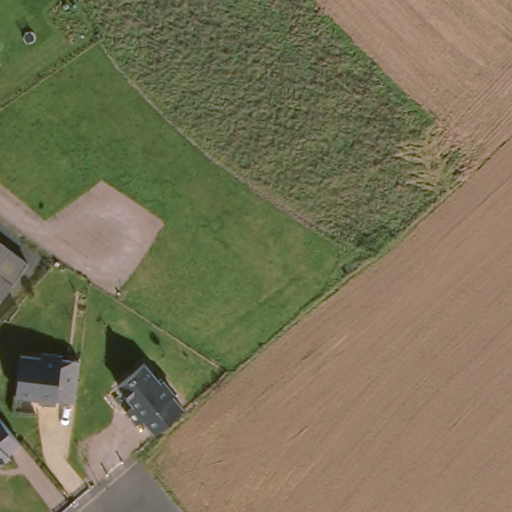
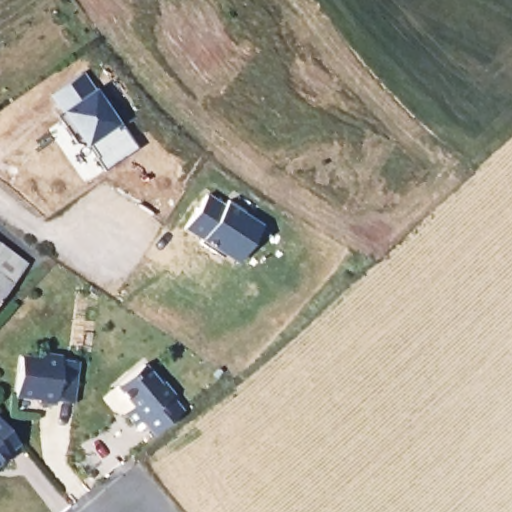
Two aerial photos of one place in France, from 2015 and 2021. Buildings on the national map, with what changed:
new [(117,128),(123,124),(138,145),(101,170),(83,137),(74,144),(55,115),(59,111),(47,91),(81,75),(117,128)]
new [(209,195),(227,205),(230,200),(247,210),(244,212),(264,225),(243,261),(229,252),(227,255),(220,251),(219,252),(204,242),(207,239),(189,227),(209,195)]
unchanged [(0,243),(27,261),(0,300),(0,243)]
unchanged [(52,402),(51,405),(35,402),(36,400),(12,397),(16,358),(36,360),(37,356),(56,358),(56,360),(74,362),(70,404),(52,402)]
unchanged [(142,418),(136,425),(124,413),(131,405),(113,387),(136,362),(155,380),(158,377),(169,389),(168,391),(180,404),(155,431),(142,418)]
unchanged [(0,455),(0,429),(13,445),(0,455)]
unchanged [(0,459),(0,455),(2,457),(0,459)]

